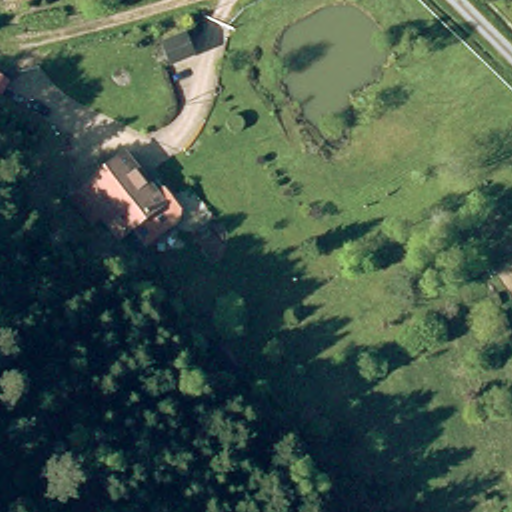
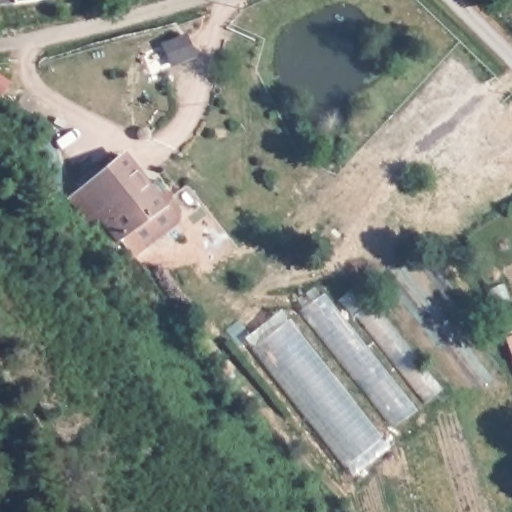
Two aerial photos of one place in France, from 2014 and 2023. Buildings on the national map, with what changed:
unchanged [(171,30),(177,44),(153,55),(147,40),(171,30)]
unchanged [(157,249),(140,232),(131,241),(112,222),(102,231),(77,198),(125,156),(135,166),(154,186),(162,197),(168,189),(177,198),(187,209),(186,212),(185,219),(165,243),(163,244),(157,249)]
new [(346,468),(252,348),(293,314),(325,292),(335,304),(358,282),(443,389),(417,409),(388,436),(346,468)]
new [(512,338),(512,349),(508,339),(512,338)]

